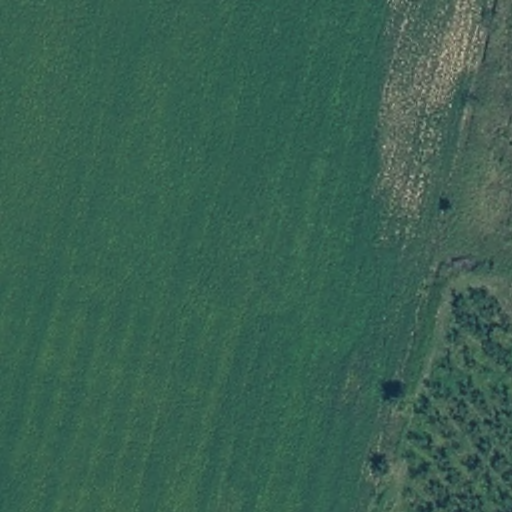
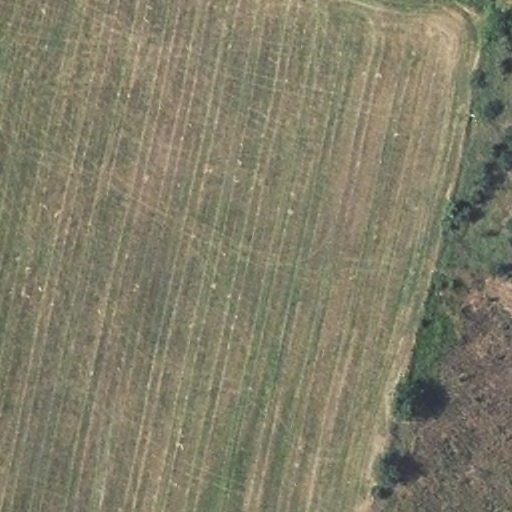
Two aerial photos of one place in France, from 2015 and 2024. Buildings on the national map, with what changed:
[]

